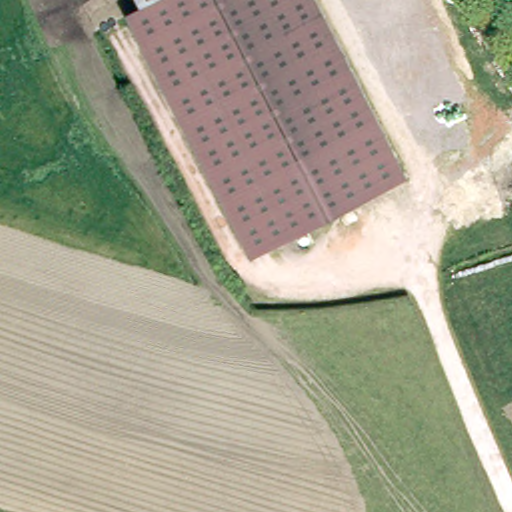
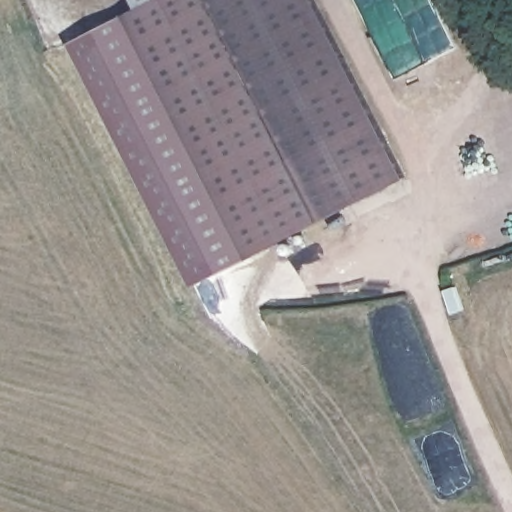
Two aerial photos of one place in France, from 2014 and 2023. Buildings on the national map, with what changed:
unchanged [(253,257),(127,16),(142,7),(157,0),(317,0),(409,177),(253,257)]
unchanged [(139,0),(157,0),(142,7),(139,0)]
new [(125,12),(127,16),(250,252),(195,281),(71,38),(125,12)]

